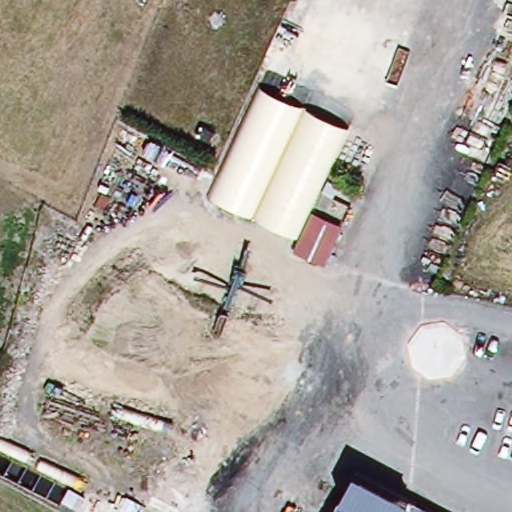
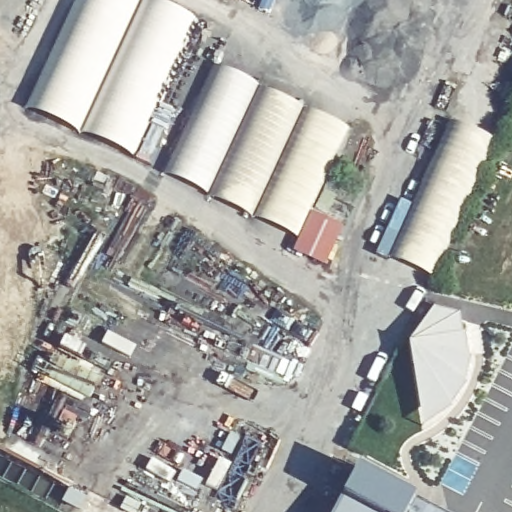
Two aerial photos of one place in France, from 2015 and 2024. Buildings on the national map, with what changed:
new [(143,0),(127,37),(79,135),(23,107),(73,0),(143,0)]
new [(134,159),(79,135),(127,37),(143,0),(154,0),(197,19),(167,82),(151,121),(167,129),(151,166),(134,159)]
unchanged [(345,128),(294,237),(208,198),(258,88),(345,128)]
new [(413,204),(450,120),(496,138),(484,169),(456,234),(432,280),(388,257),(375,252),(401,197),(413,204)]
unchanged [(341,226),(325,266),(292,251),(310,211),(341,226)]
new [(435,312),(460,318),(467,360),(466,361),(454,378),(432,382),(414,369),(407,327),(435,312)]
new [(432,382),(454,378),(466,361),(423,430),(414,369),(432,382)]
unchanged [(356,472),(434,512),(334,512),(356,472)]

